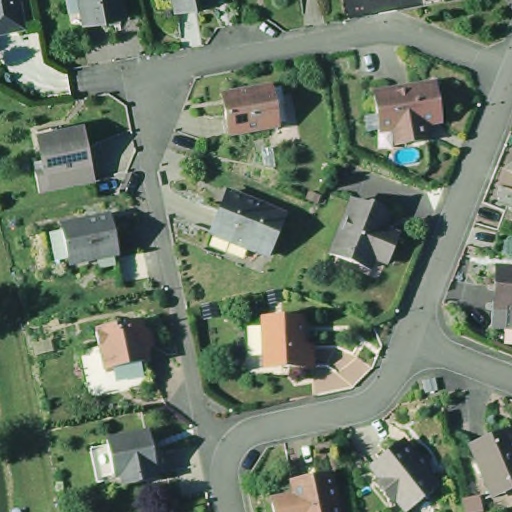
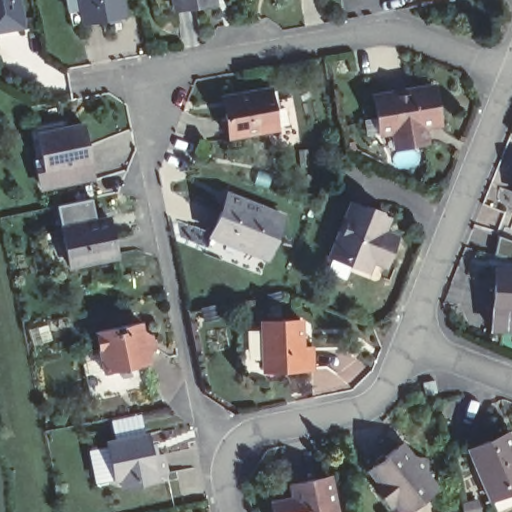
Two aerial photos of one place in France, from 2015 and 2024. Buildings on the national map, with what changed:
unchanged [(24,0),(30,28),(0,33),(0,0),(24,0)]
unchanged [(80,28),(75,0),(126,0),(130,18),(80,28)]
unchanged [(176,11),(174,0),(207,0),(197,2),(197,8),(176,11)]
unchanged [(432,83),(441,127),(428,129),(432,147),(393,153),(390,137),(380,139),(370,95),(432,83)]
unchanged [(280,131),(230,141),(225,118),(222,102),(230,100),(275,94),(280,131)]
unchanged [(92,181),(40,193),(35,171),(43,169),(35,135),(81,124),(92,181)]
unchanged [(277,217),(261,259),(205,235),(215,213),(222,194),(227,195),(277,217)]
unchanged [(347,263),(327,254),(349,205),(362,209),(372,209),(377,215),(388,220),(382,234),(396,239),(384,267),(370,261),(364,275),(345,267),(347,263)]
unchanged [(115,254),(68,264),(62,229),(108,219),(115,254)]
unchanged [(512,269),(512,307),(495,306),(497,269),(512,269)]
unchanged [(302,350),(312,350),(314,374),(248,371),(247,320),(302,322),(302,350)]
unchanged [(92,331),(138,322),(142,331),(155,339),(145,353),(147,362),(102,372),(98,359),(96,349),(92,331)]
unchanged [(152,454),(160,451),(167,479),(117,491),(113,476),(95,479),(87,448),(147,433),(152,454)]
unchanged [(469,451),(503,437),(507,436),(512,445),(512,493),(507,496),(490,502),(487,495),(469,451)]
unchanged [(405,442),(418,459),(426,453),(432,462),(427,470),(440,489),(412,511),(400,496),(391,502),(379,487),(386,480),(375,464),(405,442)]
unchanged [(339,512),(293,512),(287,483),(332,475),(339,512)]

